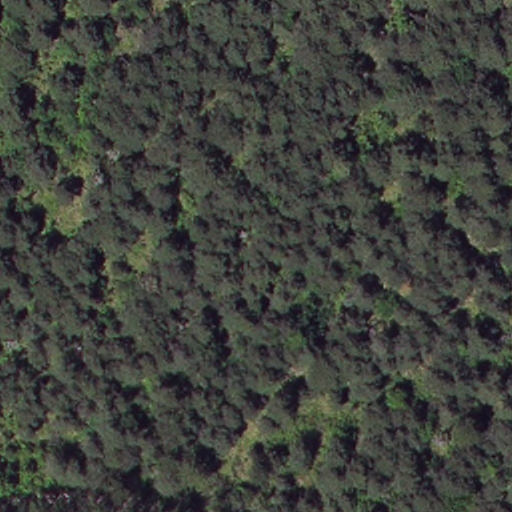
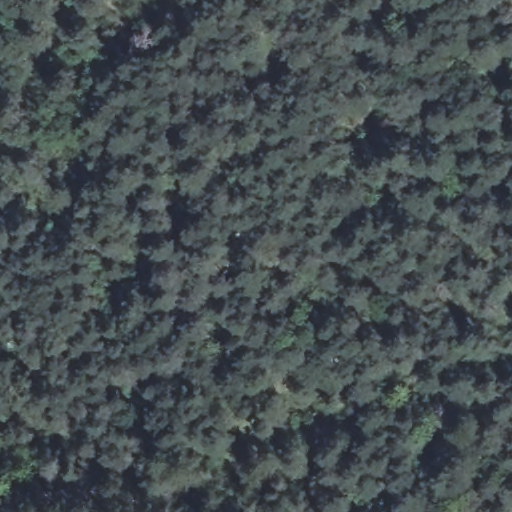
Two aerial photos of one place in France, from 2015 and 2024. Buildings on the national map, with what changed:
[]

